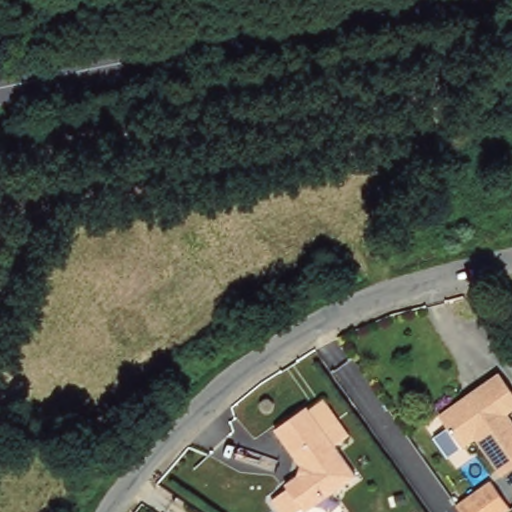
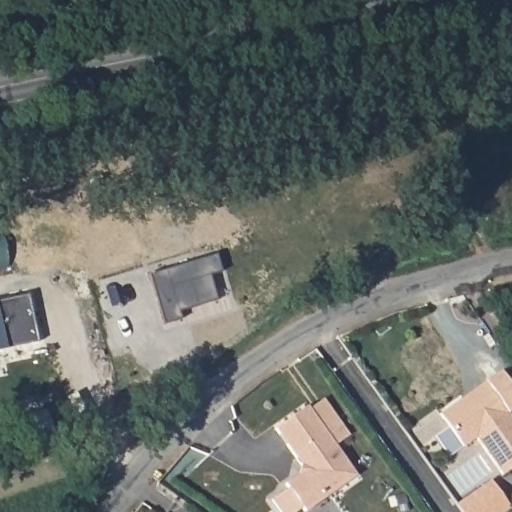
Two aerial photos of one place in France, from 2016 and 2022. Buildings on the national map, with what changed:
new [(219,254),(225,271),(212,275),(221,299),(182,311),(185,318),(167,323),(152,273),(219,254)]
new [(42,341),(0,350),(0,299),(32,292),(42,341)]
unchanged [(512,394),(512,402),(502,409),(512,422),(512,461),(500,471),(472,435),(459,445),(435,413),(458,395),(478,380),(493,369),(512,394)]
unchanged [(302,473),(272,429),(308,405),(357,475),(307,512),(282,512),(273,497),(283,487),(302,473)]
unchanged [(509,512),(458,512),(453,507),(492,478),(512,509),(512,510),(509,512)]

